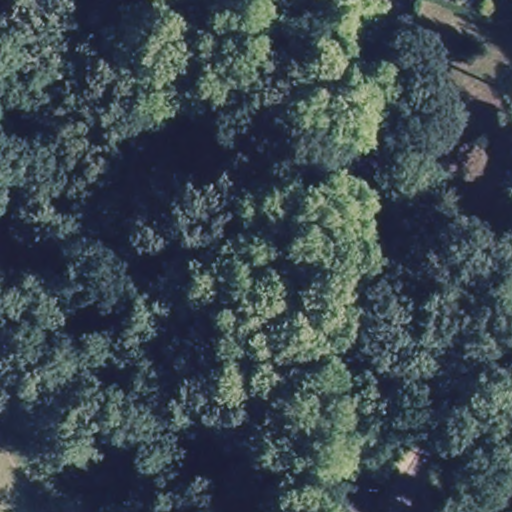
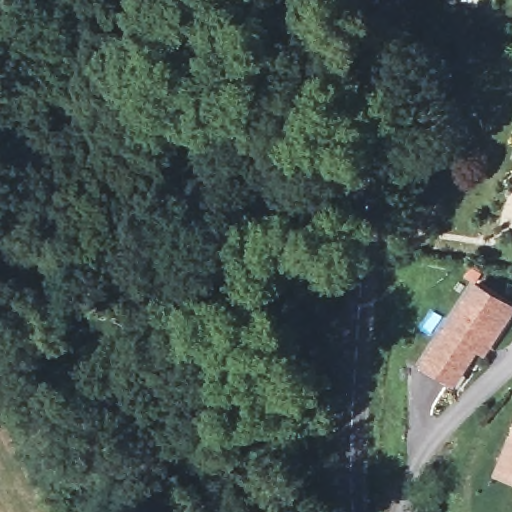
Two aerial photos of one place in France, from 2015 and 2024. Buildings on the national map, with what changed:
new [(512,303),(512,312),(483,356),(475,350),(453,385),(418,361),(472,278),(512,303)]
new [(491,475),(512,426),(512,483),(491,475)]

